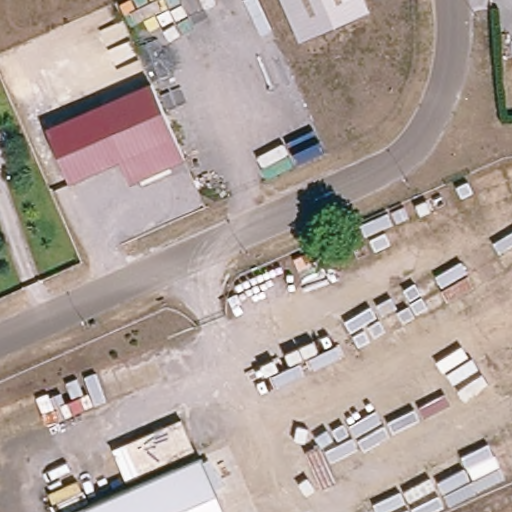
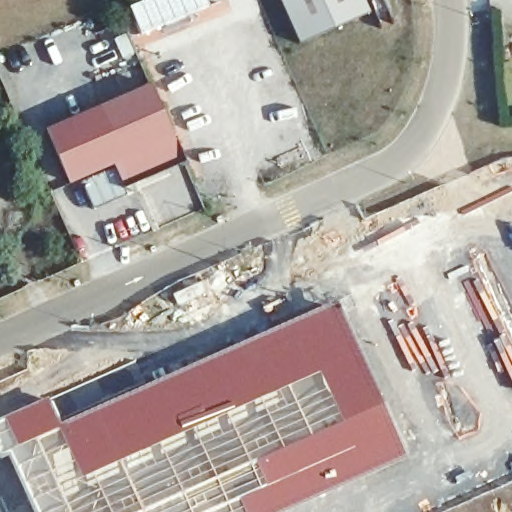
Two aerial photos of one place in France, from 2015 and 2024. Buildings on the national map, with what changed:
unchanged [(307,45),(288,0),(372,0),(377,13),(307,45)]
unchanged [(151,86),(185,161),(130,182),(119,163),(69,183),(48,131),(151,86)]
new [(404,457),(284,512),(219,512),(197,462),(174,473),(86,512),(33,512),(6,455),(0,458),(0,419),(48,397),(58,427),(337,305),(404,457)]
unchanged [(219,512),(191,512),(174,473),(197,462),(219,512)]
unchanged [(174,473),(191,512),(86,512),(174,473)]

